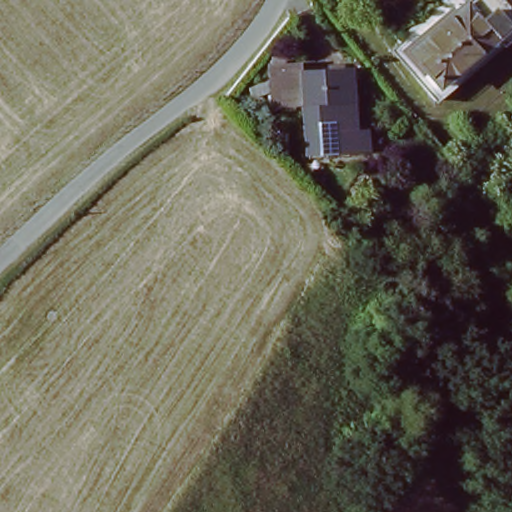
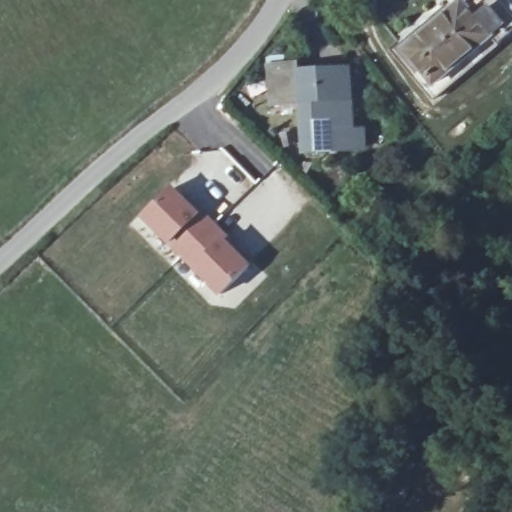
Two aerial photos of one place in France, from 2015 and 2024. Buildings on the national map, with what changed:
unchanged [(467,0),(502,0),(512,13),(512,26),(465,61),(429,89),(400,51),(434,25),(467,0)]
unchanged [(360,131),(370,133),(371,159),(303,162),(296,71),(357,69),(360,131)]
new [(181,258),(141,219),(169,190),(181,201),(184,199),(197,211),(212,225),(181,258)]
new [(212,225),(225,238),(238,250),(235,254),(248,265),(220,295),(181,258),(212,225)]

